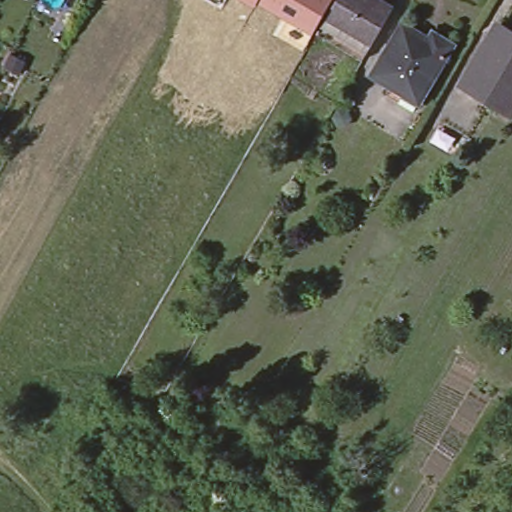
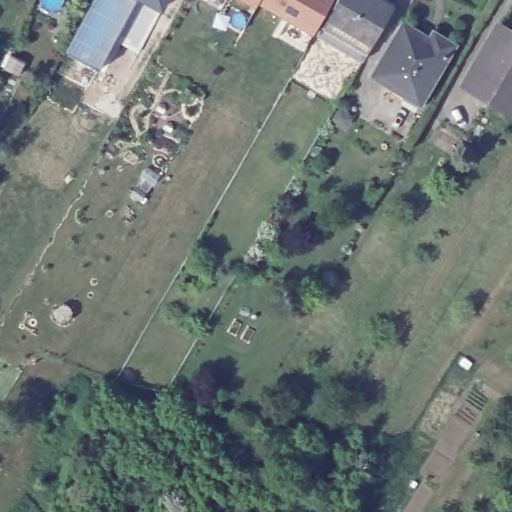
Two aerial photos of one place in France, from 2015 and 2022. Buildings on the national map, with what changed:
new [(91,0),(147,0),(161,8),(138,51),(114,39),(98,69),(64,50),(91,0)]
new [(161,8),(147,0),(165,0),(161,8)]
unchanged [(319,20),(311,33),(259,2),(256,8),(242,0),(331,0),(319,20)]
unchanged [(384,11),(364,46),(319,20),(331,0),(365,0),(384,11)]
unchanged [(389,93),(394,85),(374,73),(404,21),(432,37),(435,31),(457,43),(422,100),(417,109),(389,93)]
unchanged [(512,111),(484,94),(486,90),(468,79),(501,23),(512,30),(512,111)]

